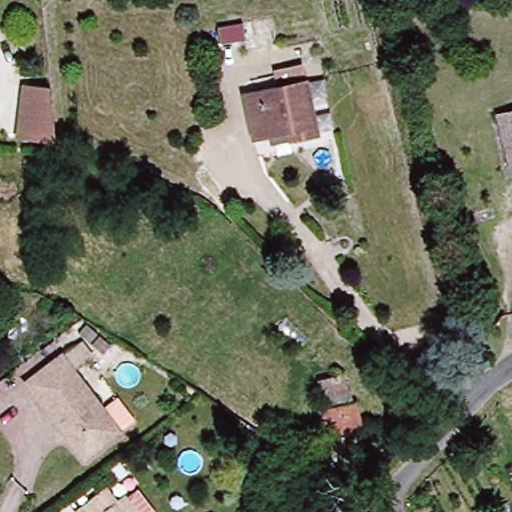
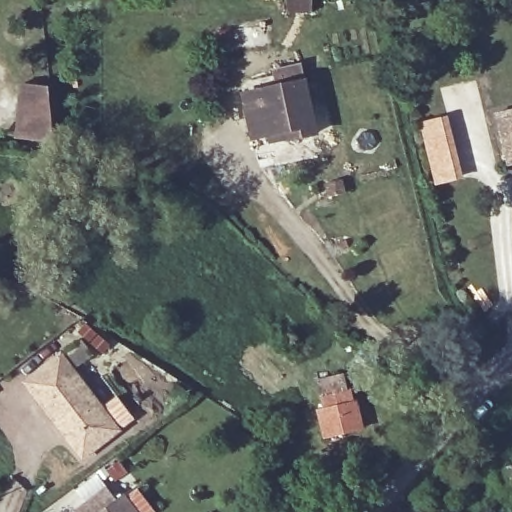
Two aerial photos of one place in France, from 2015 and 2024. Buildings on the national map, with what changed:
unchanged [(318,139),(287,144),(285,136),(253,141),(245,97),(303,84),(318,139)]
unchanged [(50,89),(55,142),(14,139),(20,85),(50,89)]
unchanged [(512,160),(498,163),(488,111),(512,106),(512,160)]
new [(419,124),(449,116),(465,180),(435,186),(419,124)]
unchanged [(340,203),(323,205),(321,190),(337,187),(340,203)]
unchanged [(19,383),(56,352),(117,430),(77,465),(19,383)]
unchanged [(356,431),(318,437),(315,415),(322,413),(318,395),(321,395),(318,382),(341,377),(356,431)]
unchanged [(122,497),(133,512),(80,512),(84,509),(108,490),(116,503),(122,497)]

